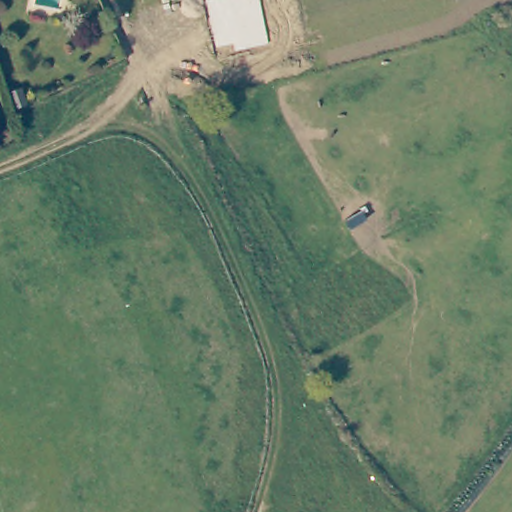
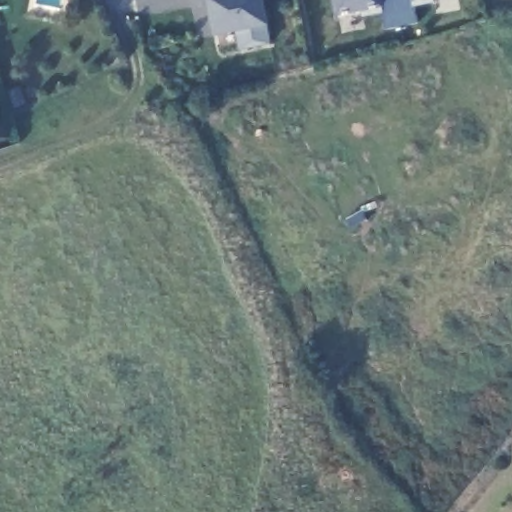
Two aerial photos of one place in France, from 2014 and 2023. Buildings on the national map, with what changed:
unchanged [(270,27),(264,29),(270,45),(241,51),(234,34),(210,38),(203,0),(264,0),(270,27)]
new [(410,6),(413,26),(382,32),(377,11),(335,19),(330,0),(439,0),(410,6)]

